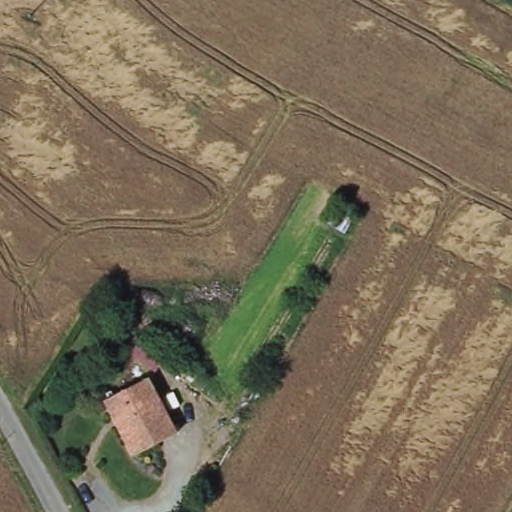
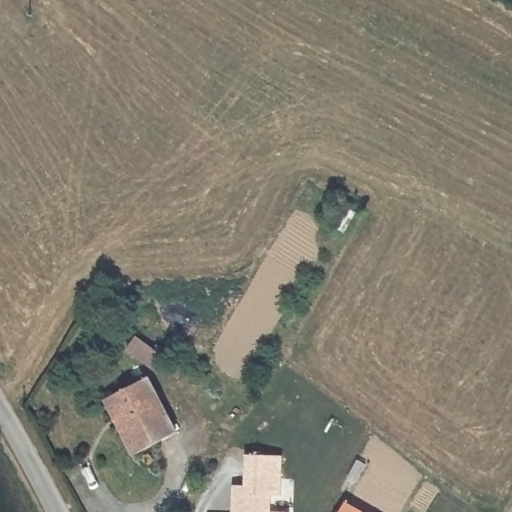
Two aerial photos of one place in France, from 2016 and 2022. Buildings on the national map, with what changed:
unchanged [(181,438),(137,460),(109,399),(154,377),(181,438)]
new [(271,493),(270,511),(289,512),(231,512),(232,485),(243,485),(243,455),(283,457),(283,492),(271,493)]

